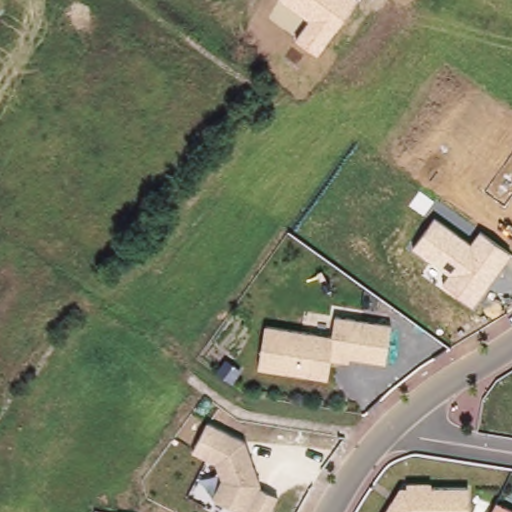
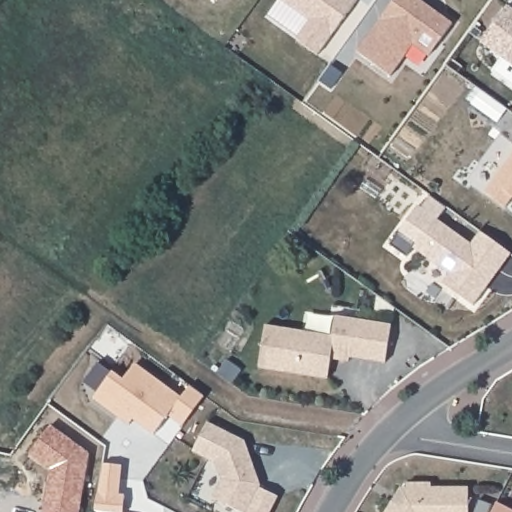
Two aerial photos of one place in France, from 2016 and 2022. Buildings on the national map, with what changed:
new [(218,1),(217,0),(219,0),(218,1)]
unchanged [(308,19),(282,0),(357,0),(318,55),(295,39),(308,19)]
new [(396,0),(421,0),(418,3),(437,17),(440,14),(454,24),(430,57),(415,45),(392,76),(357,53),(396,0)]
new [(508,6),(512,9),(512,65),(482,43),(508,6)]
new [(505,207),(485,192),(512,157),(512,198),(505,207)]
unchanged [(442,285),(450,274),(411,248),(434,216),(471,243),(480,231),(511,254),(472,307),(442,285)]
unchanged [(331,338),(335,315),(391,326),(386,373),(332,363),(328,382),(258,370),(263,325),(331,338)]
new [(119,417),(94,398),(114,371),(125,379),(136,363),(182,397),(191,385),(205,395),(183,425),(169,415),(155,433),(135,419),(130,425),(119,417)]
unchanged [(222,478),(215,462),(192,453),(208,422),(247,441),(261,482),(259,488),(278,497),(271,512),(238,512),(213,498),(222,478)]
new [(43,512),(50,467),(45,463),(44,465),(30,454),(50,425),(90,453),(80,512),(43,512)]
new [(44,465),(45,463),(50,467),(50,470),(44,465)]
new [(122,465),(119,494),(125,495),(123,512),(102,512),(95,511),(104,463),(122,465)]
unchanged [(401,490),(403,490),(409,490),(409,483),(432,483),(432,490),(470,489),(471,512),(388,512),(393,503),(401,490)]
unchanged [(491,512),(497,500),(512,509),(512,512),(491,512)]

